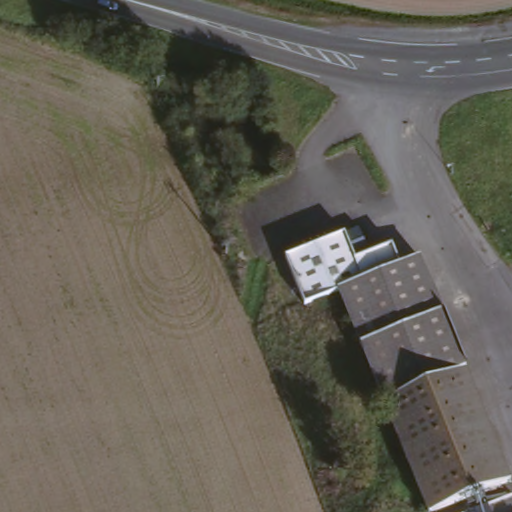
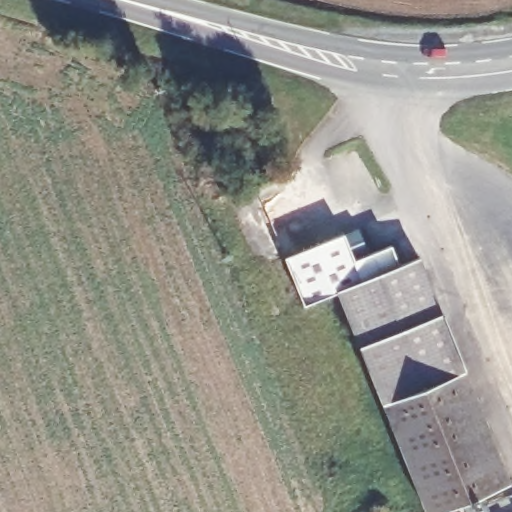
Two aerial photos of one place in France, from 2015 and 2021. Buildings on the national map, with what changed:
unchanged [(381,224),(388,248),(411,242),(418,265),(437,260),(499,492),(424,512),(418,512),(354,285),(316,295),(303,245),(363,229),(381,224)]

